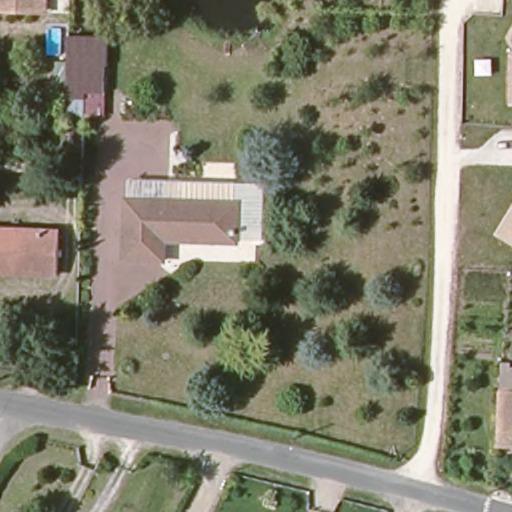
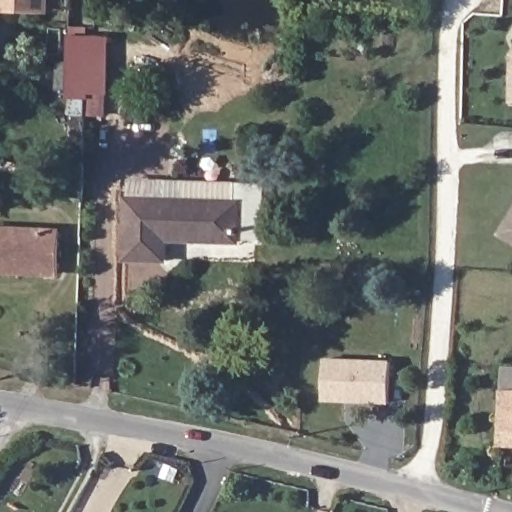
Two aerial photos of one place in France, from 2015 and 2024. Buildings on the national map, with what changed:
unchanged [(48,10),(5,8),(5,0),(48,0),(48,10)]
unchanged [(67,152),(73,39),(109,40),(108,94),(89,93),(86,150),(67,152)]
unchanged [(510,55),(512,50),(512,103),(509,104),(510,55)]
unchanged [(123,202),(124,180),(176,183),(175,203),(123,202)]
unchanged [(176,183),(257,186),(256,240),(231,239),(233,204),(175,203),(176,183)]
unchanged [(233,204),(231,239),(231,244),(164,240),(163,264),(121,263),(123,202),(175,203),(233,204)]
unchanged [(512,211),(512,244),(497,235),(512,211)]
unchanged [(58,272),(0,272),(0,231),(58,233),(58,272)]
new [(324,403),(325,358),(393,360),(390,405),(324,403)]
unchanged [(500,365),(512,365),(512,445),(499,445),(500,365)]

